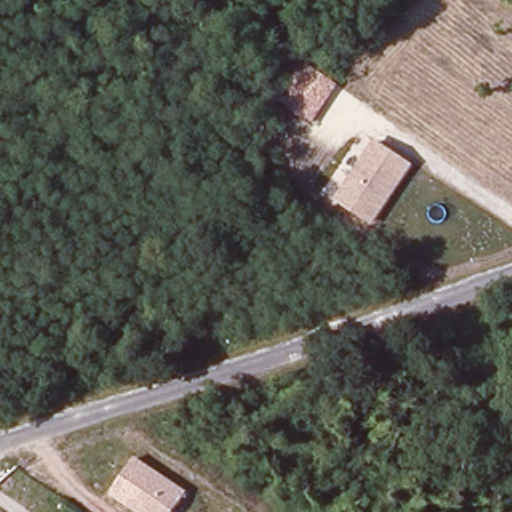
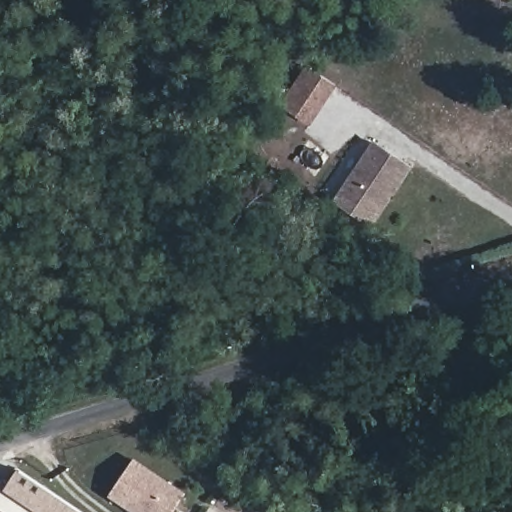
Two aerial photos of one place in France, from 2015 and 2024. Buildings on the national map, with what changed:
unchanged [(313,125),(280,104),(305,65),(337,85),(313,125)]
unchanged [(374,229),(333,203),(373,140),(414,166),(374,229)]
unchanged [(172,512),(135,512),(110,495),(135,456),(186,492),(172,512)]
new [(82,512),(38,512),(5,490),(18,470),(82,512)]

